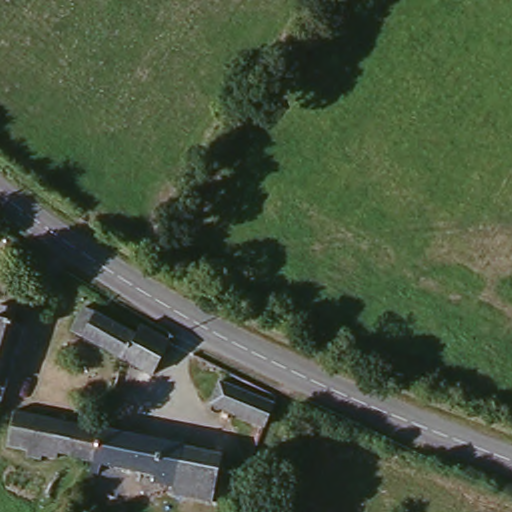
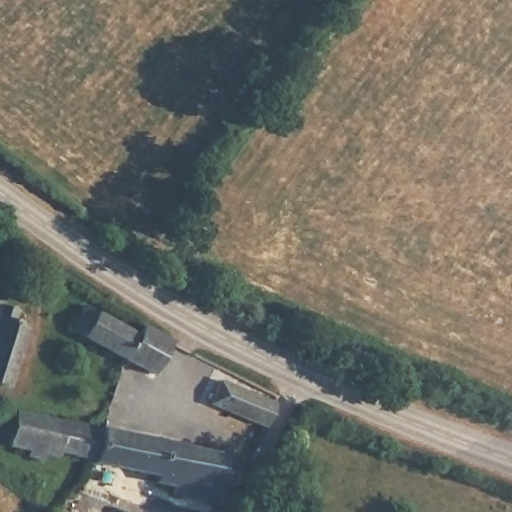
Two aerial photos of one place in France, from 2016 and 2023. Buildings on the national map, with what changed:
unchanged [(137,338),(124,361),(123,363),(70,331),(83,307),(137,338)]
unchanged [(16,313),(14,323),(24,325),(0,402),(0,308),(16,313)]
unchanged [(174,346),(156,378),(124,361),(137,338),(142,328),(174,346)]
unchanged [(212,406),(221,384),(272,404),(264,427),(212,406)]
unchanged [(36,453),(23,451),(23,447),(6,443),(12,408),(30,413),(32,413),(105,430),(95,461),(39,449),(36,453)]
unchanged [(175,493),(176,486),(157,481),(157,474),(95,461),(105,430),(255,465),(240,505),(175,493)]

